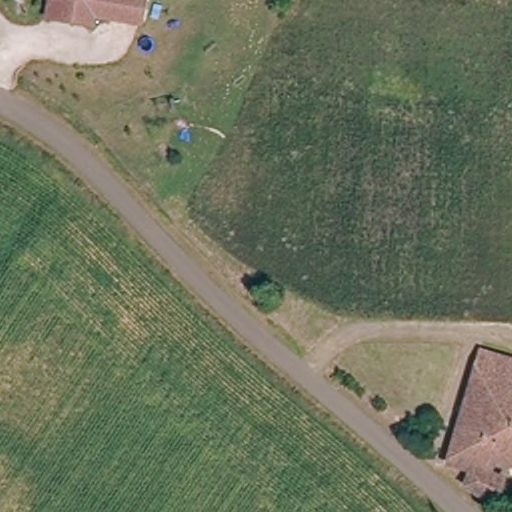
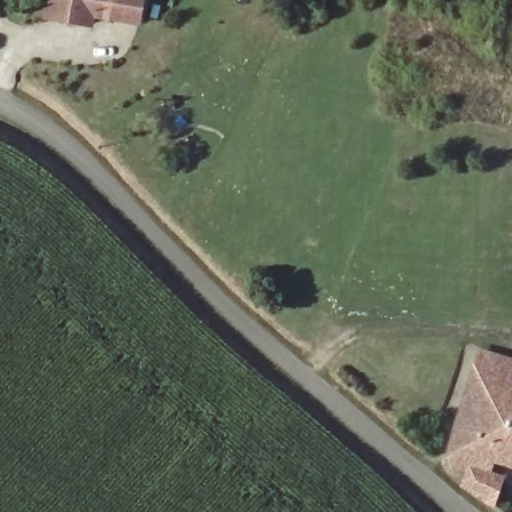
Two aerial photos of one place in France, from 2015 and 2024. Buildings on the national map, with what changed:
unchanged [(51,22),(53,0),(146,0),(143,25),(97,17),(96,28),(51,22)]
unchanged [(451,466),(478,377),(462,370),(465,354),(482,357),(486,343),(512,350),(512,352),(503,392),(512,394),(512,461),(482,453),(479,468),(508,477),(504,490),(512,492),(512,512),(499,512),(469,497),(475,476),(451,466)]

